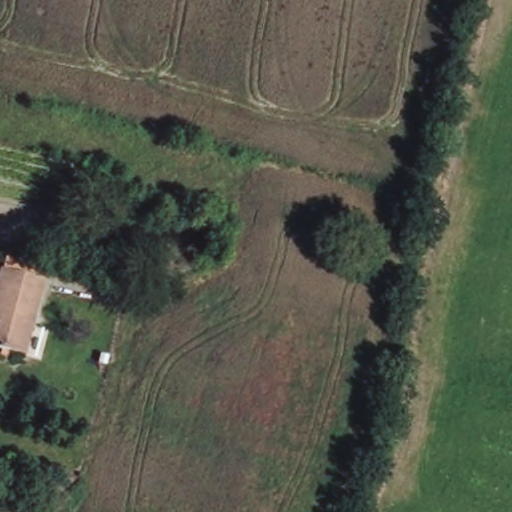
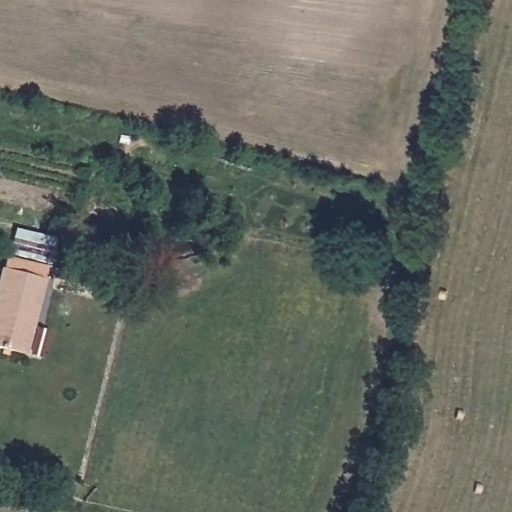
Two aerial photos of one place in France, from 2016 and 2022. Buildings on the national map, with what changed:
unchanged [(41,281),(21,355),(0,350),(0,275),(1,269),(41,281)]

